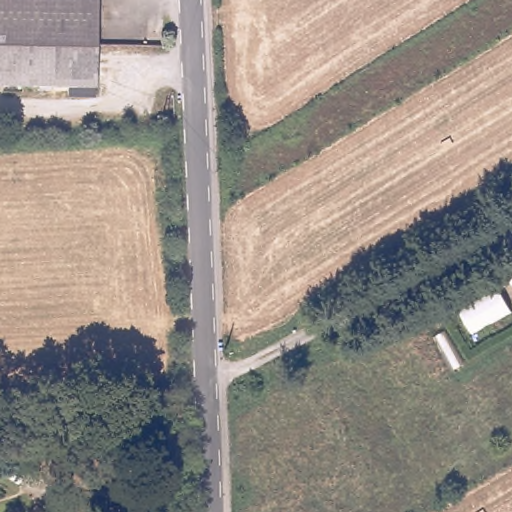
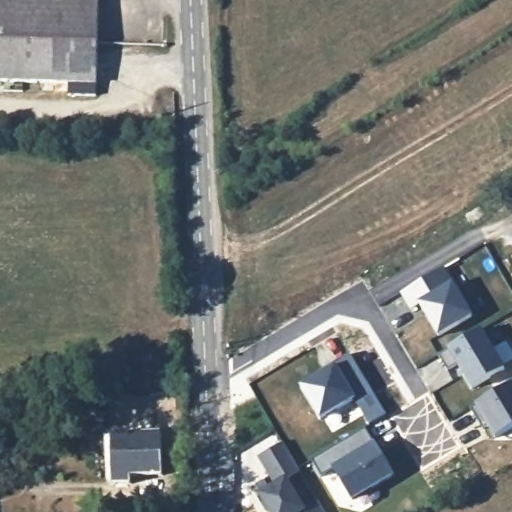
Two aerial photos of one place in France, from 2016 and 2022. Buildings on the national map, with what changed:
unchanged [(102,43),(0,41),(0,0),(103,0),(102,43)]
unchanged [(101,96),(75,96),(75,84),(0,82),(0,41),(102,43),(101,96)]
new [(419,306),(410,311),(399,294),(444,269),(453,283),(473,317),(437,337),(419,306)]
new [(445,350),(480,330),(505,369),(468,390),(445,350)]
new [(370,426),(355,400),(320,420),(298,384),(334,362),(349,354),(387,416),(370,426)]
new [(496,437),(475,403),(512,382),(512,428),(496,437)]
new [(351,501),(332,471),(320,478),(310,461),(365,430),(372,443),(393,477),(351,501)]
new [(272,485),(258,459),(282,443),(300,472),(288,480),(306,510),(318,503),(323,512),(267,512),(256,495),(272,485)]

